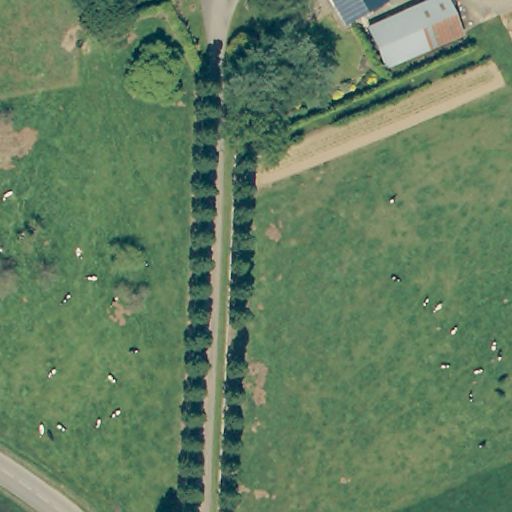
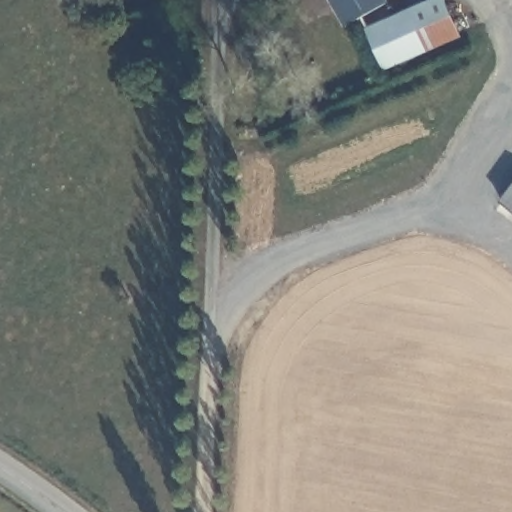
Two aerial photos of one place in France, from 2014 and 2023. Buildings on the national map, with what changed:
unchanged [(339,0),(385,0),(352,21),(339,0)]
unchanged [(388,65),(372,27),(434,0),(448,0),(462,33),(410,56),(388,65)]
new [(499,201),(512,185),(512,211),(499,201)]

